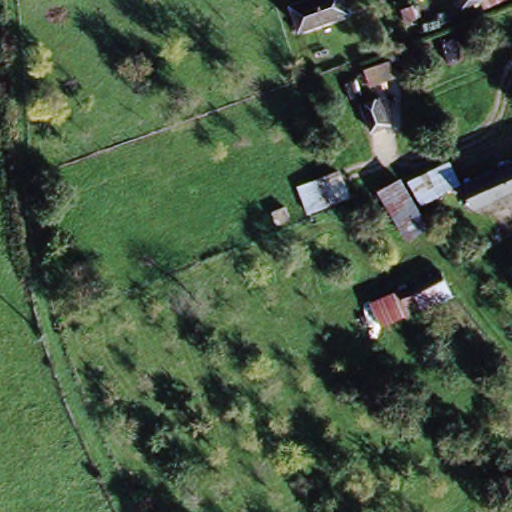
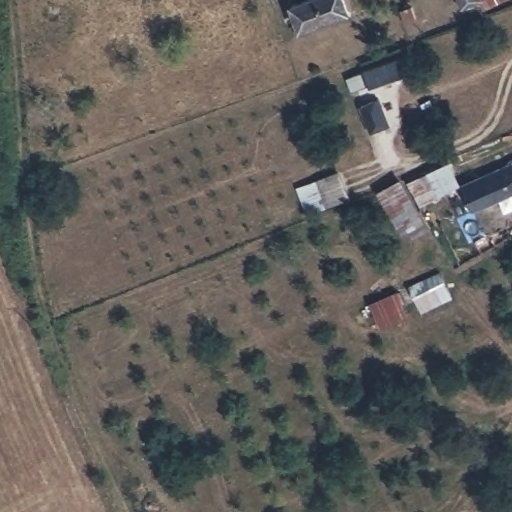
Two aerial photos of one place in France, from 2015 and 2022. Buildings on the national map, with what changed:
unchanged [(317,0),(342,0),(347,18),(296,34),(288,11),(317,0)]
unchanged [(458,0),(472,0),(472,2),(460,6),(458,0)]
unchanged [(472,0),(477,0),(472,1),(472,0)]
unchanged [(477,0),(495,0),(480,6),(477,0)]
unchanged [(413,30),(403,35),(400,24),(410,20),(413,30)]
unchanged [(400,86),(371,97),(364,85),(395,73),(400,86)]
unchanged [(387,119),(368,127),(359,107),(380,99),(387,119)]
unchanged [(377,189),(400,180),(450,159),(461,185),(415,203),(427,231),(392,244),(374,191),(377,189)]
unchanged [(477,211),(468,186),(512,166),(512,195),(477,211)]
unchanged [(319,207),(312,182),(344,173),(353,201),(319,207)]
unchanged [(403,285),(445,267),(455,300),(412,315),(379,328),(368,301),(403,285)]

